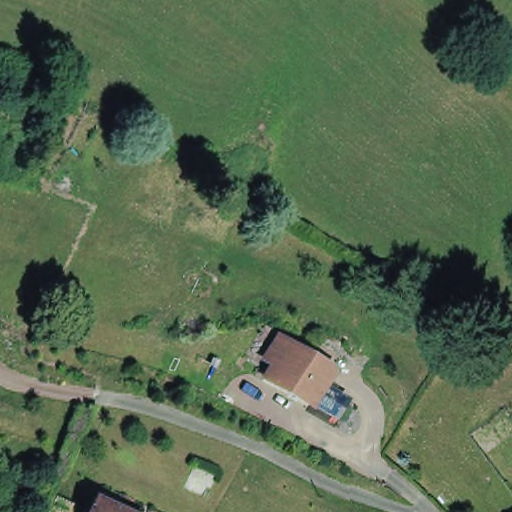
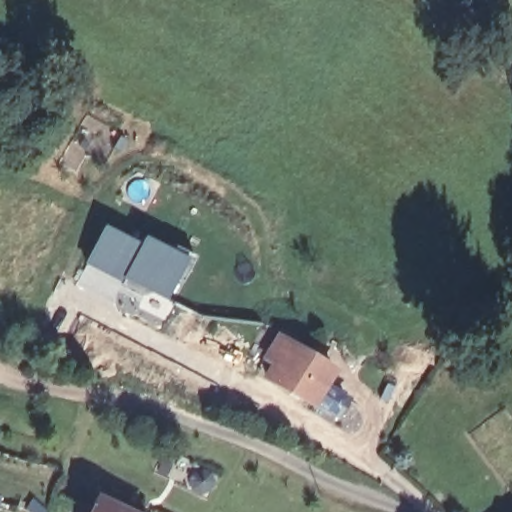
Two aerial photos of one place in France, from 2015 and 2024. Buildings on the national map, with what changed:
new [(140,244),(144,236),(175,251),(177,248),(195,257),(182,281),(178,279),(167,301),(148,292),(145,295),(85,265),(104,225),(140,244)]
unchanged [(304,394),(260,368),(267,355),(257,349),(269,328),(280,334),(324,359),(315,375),(341,390),(330,409),(325,416),(300,401),(304,394)]
unchanged [(97,502),(119,512),(93,512),(96,505),(97,502)]

